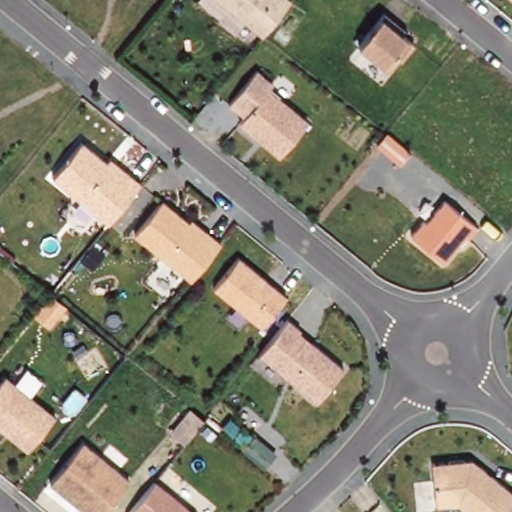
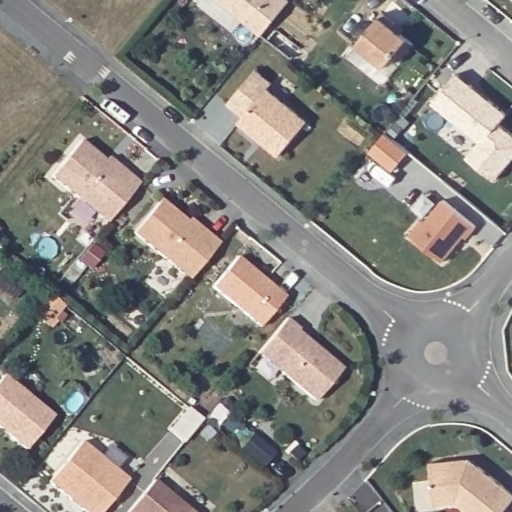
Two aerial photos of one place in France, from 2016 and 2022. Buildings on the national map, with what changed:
unchanged [(265,32),(262,35),(219,0),(290,0),(291,0),(265,32)]
unchanged [(401,59),(396,55),(386,66),(352,40),(378,7),(396,22),(405,29),(402,33),(414,43),(401,59)]
new [(508,113),(500,122),(512,132),(512,161),(497,179),(467,156),(480,141),(432,102),(458,72),(508,113)]
unchanged [(267,88),(307,121),(278,155),(239,121),(267,88)]
unchanged [(116,213),(107,222),(52,176),(81,140),(106,161),(109,157),(127,172),(140,183),(116,213)]
unchanged [(132,234),(162,200),(189,222),(192,218),(219,242),(191,280),(132,234)]
unchanged [(411,235),(423,220),(426,221),(445,200),(477,226),(467,238),(465,235),(443,261),(411,235)]
unchanged [(261,327),(212,286),(238,256),(286,296),(261,327)]
unchanged [(345,367),(317,401),(258,353),(287,318),(300,328),(297,332),(311,344),(312,341),(345,367)]
unchanged [(27,450),(0,428),(0,379),(5,374),(55,416),(27,450)]
unchanged [(184,444),(170,432),(190,407),(204,420),(184,444)]
unchanged [(85,512),(49,482),(82,442),(129,480),(102,512),(85,512)]
unchanged [(435,505),(431,461),(462,458),(471,458),(480,465),(512,492),(512,502),(504,512),(469,512),(457,502),(435,505)]
unchanged [(128,512),(143,493),(154,480),(192,512),(128,512)]

